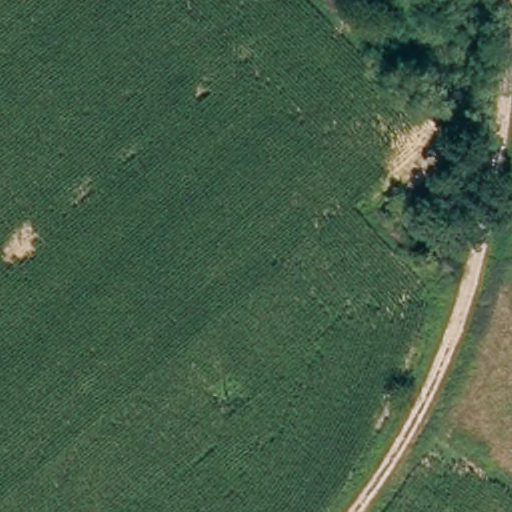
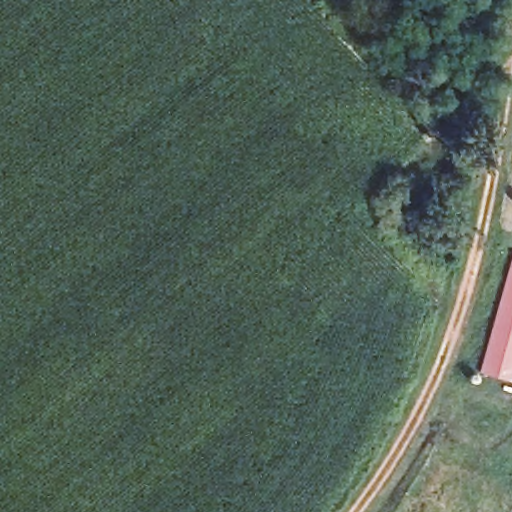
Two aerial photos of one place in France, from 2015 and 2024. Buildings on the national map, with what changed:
new [(482,368),(512,268),(512,377),(482,368)]

